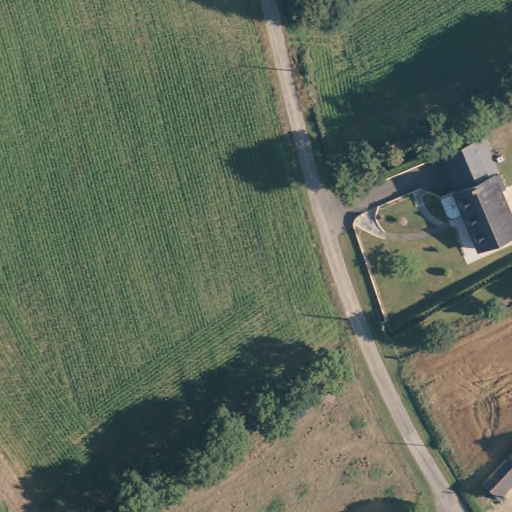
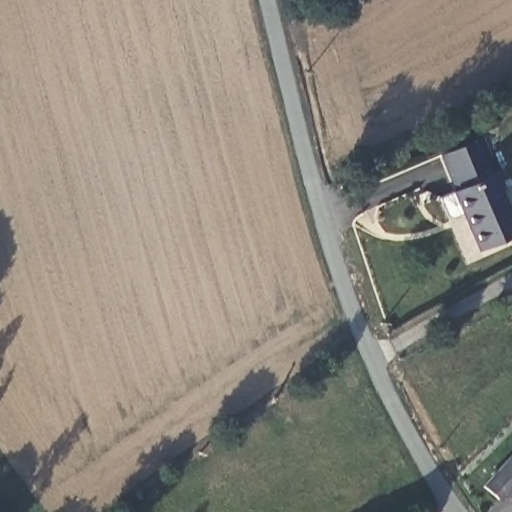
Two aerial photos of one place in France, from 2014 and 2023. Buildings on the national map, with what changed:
unchanged [(478,249),(462,210),(452,214),(445,211),(438,198),(455,191),(439,154),(485,134),(500,171),(495,174),(512,215),(512,235),(478,249)]
unchanged [(502,497),(486,484),(512,453),(512,485),(502,497)]

